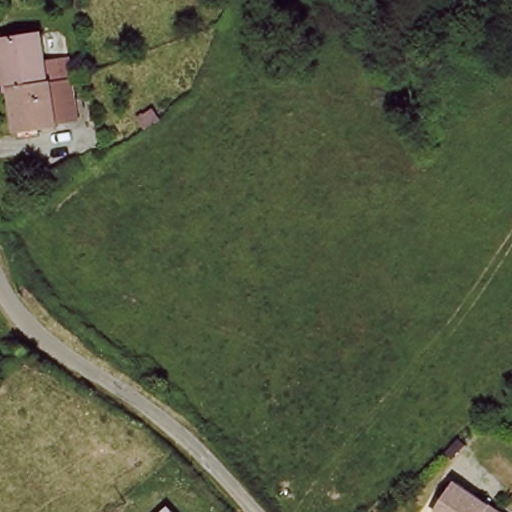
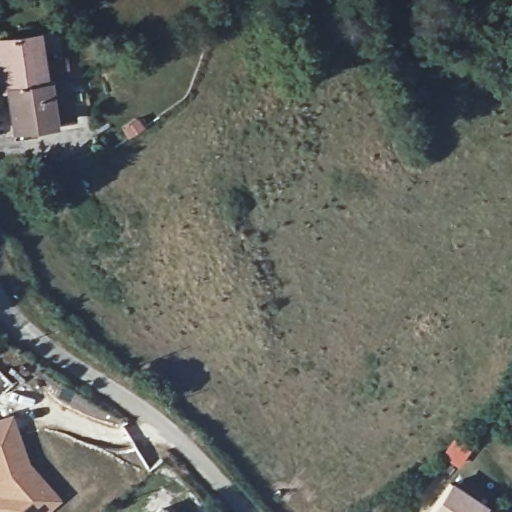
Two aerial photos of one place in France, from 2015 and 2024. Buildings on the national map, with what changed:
unchanged [(14,131),(7,89),(0,41),(0,38),(41,32),(49,82),(55,125),(14,131)]
new [(12,415),(29,465),(60,499),(46,512),(0,512),(0,418),(12,415)]
unchanged [(442,475),(499,512),(418,512),(442,475)]
unchanged [(161,503),(168,512),(151,512),(161,503)]

